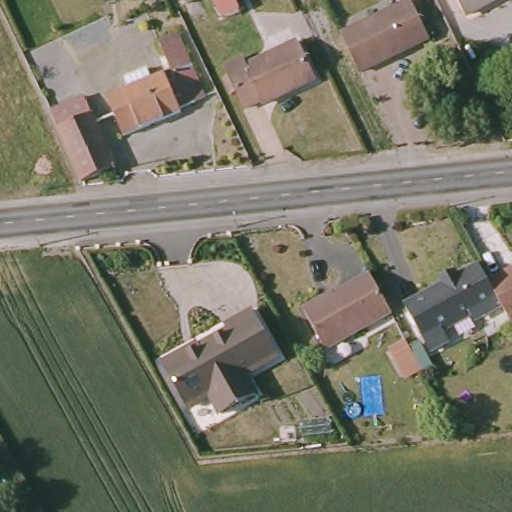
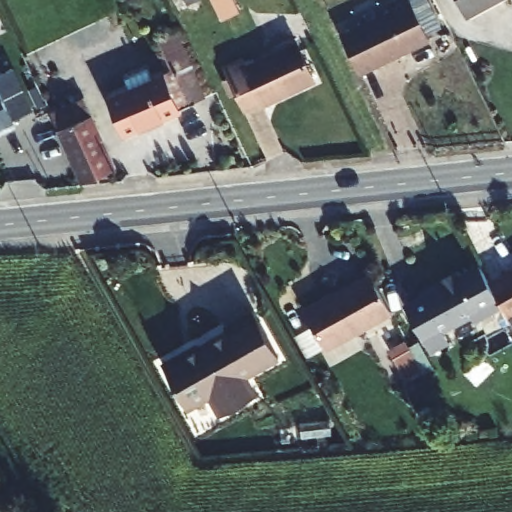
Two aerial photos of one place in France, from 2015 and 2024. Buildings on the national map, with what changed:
unchanged [(185,0),(200,0),(187,6),(185,0)]
unchanged [(460,17),(451,0),(491,0),(460,17)]
unchanged [(341,36),(411,1),(430,39),(360,73),(341,36)]
unchanged [(128,94),(124,84),(147,74),(151,84),(170,76),(157,46),(177,37),(207,100),(194,106),(195,108),(179,114),(180,117),(123,142),(106,103),(128,94)]
unchanged [(230,78),(225,68),(242,59),(246,67),(297,42),(315,80),(262,105),(262,102),(245,110),(237,94),(232,96),(224,80),(230,78)]
new [(12,68),(32,111),(14,119),(15,124),(0,131),(0,74),(12,68)]
unchanged [(50,113),(84,98),(115,168),(82,183),(50,113)]
unchanged [(478,313),(467,310),(436,327),(442,338),(425,347),(400,303),(417,294),(417,291),(438,280),(435,275),(449,268),(452,272),(474,260),(484,278),(497,302),(478,313)]
unchanged [(484,278),(512,262),(512,329),(497,302),(484,278)]
unchanged [(322,295),(324,296),(370,271),(387,301),(390,308),(325,345),(303,306),(322,295)]
unchanged [(187,350),(190,354),(227,332),(225,326),(252,310),(279,357),(245,376),(257,395),(222,415),(210,396),(187,409),(162,364),(187,350)]

